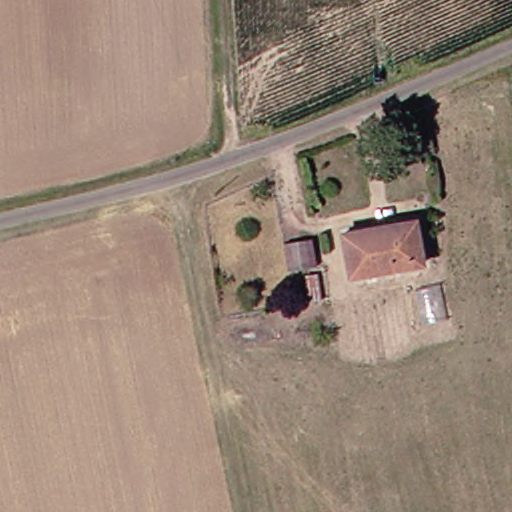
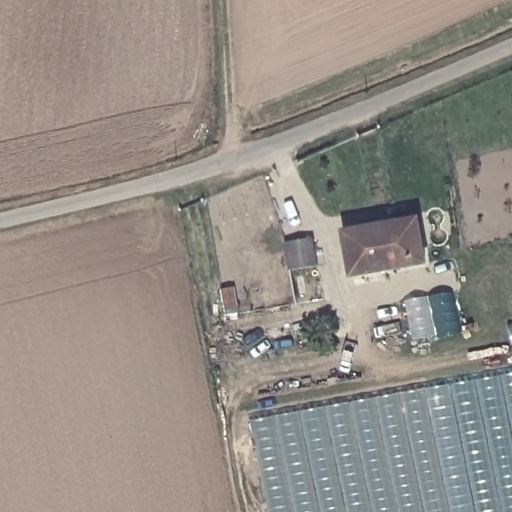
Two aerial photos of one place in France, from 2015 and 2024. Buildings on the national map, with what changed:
unchanged [(431,268),(358,278),(353,231),(425,220),(431,268)]
unchanged [(334,265),(309,270),(305,240),(330,237),(334,265)]
new [(512,374),(512,512),(271,512),(252,420),(512,374)]

